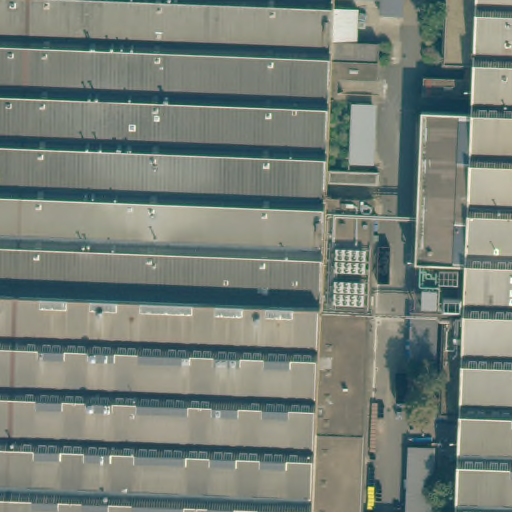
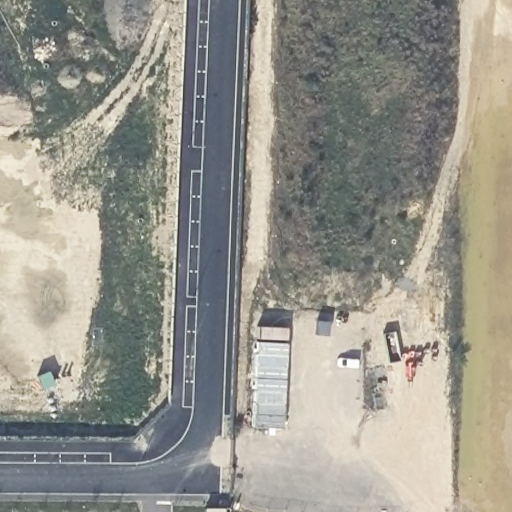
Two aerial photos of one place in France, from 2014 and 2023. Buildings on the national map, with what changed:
demolished [(333,18),(332,42),(361,44),(377,45),(376,81),(340,80),(340,96),(330,96),(322,304),(325,304),(329,196),(375,198),(363,512),(0,512),(0,0),(333,0),(333,18)]
demolished [(441,412),(446,312),(464,313),(466,265),(416,262),(422,112),(472,113),(473,99),(424,97),(425,78),(462,80),(463,65),(445,64),(448,0),(512,0),(512,512),(456,512),(460,413),(441,412)]
demolished [(331,179),(331,168),(383,171),(382,181),(331,179)]

